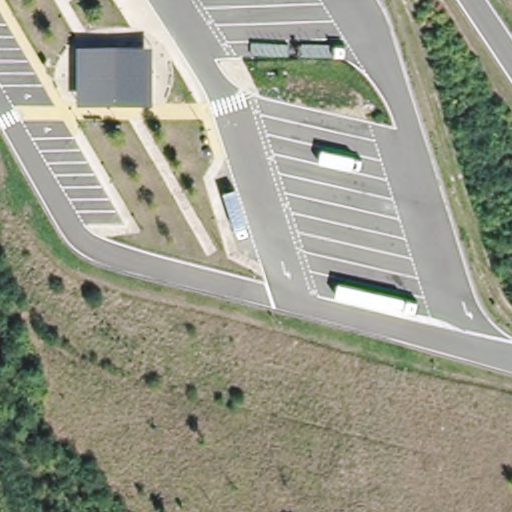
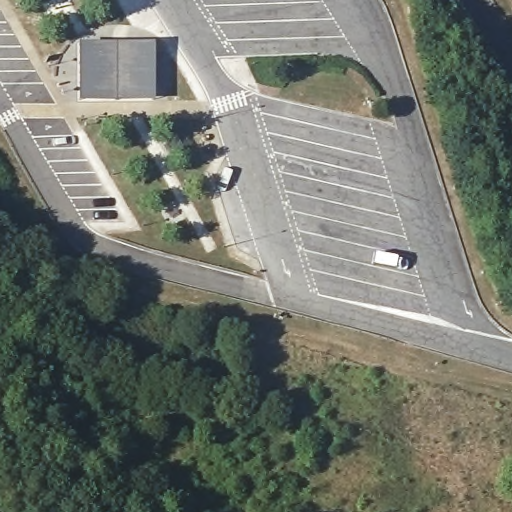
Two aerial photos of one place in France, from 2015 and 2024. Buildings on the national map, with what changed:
unchanged [(155,45),(155,103),(78,102),(79,45),(155,45)]

